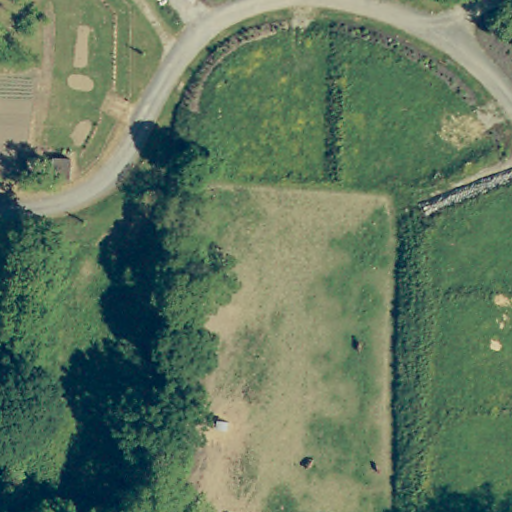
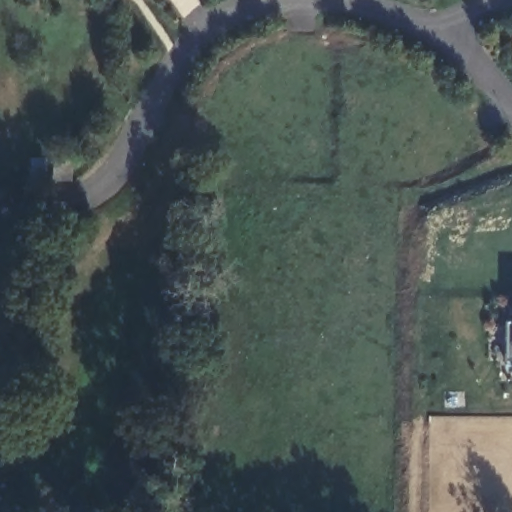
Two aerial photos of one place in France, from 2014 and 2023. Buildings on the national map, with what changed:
unchanged [(504,360),(505,323),(512,323),(512,360),(504,360)]

